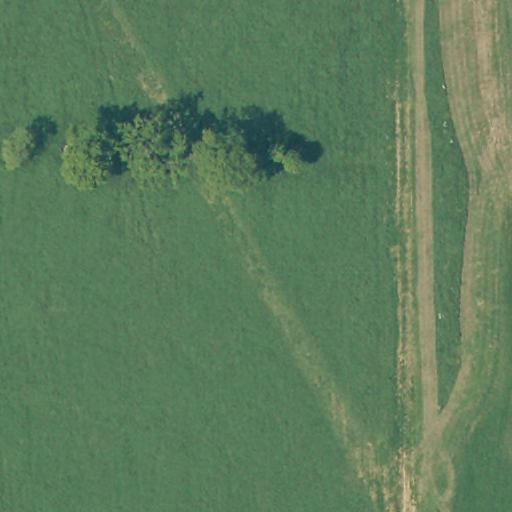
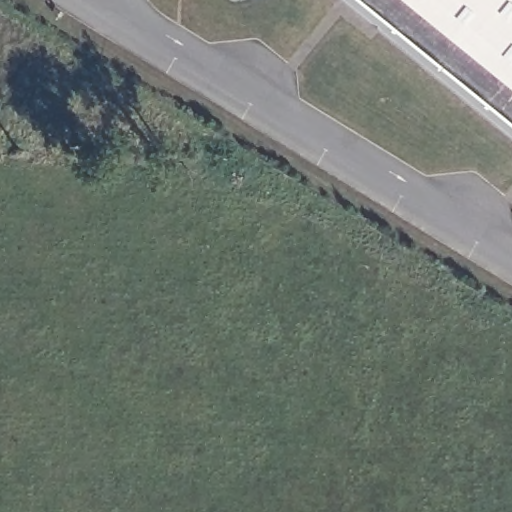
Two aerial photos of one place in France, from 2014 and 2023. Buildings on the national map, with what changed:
new [(512,138),(342,0),(512,0),(512,138)]

